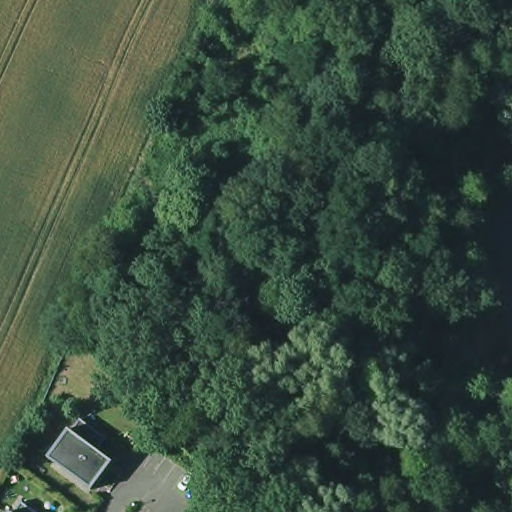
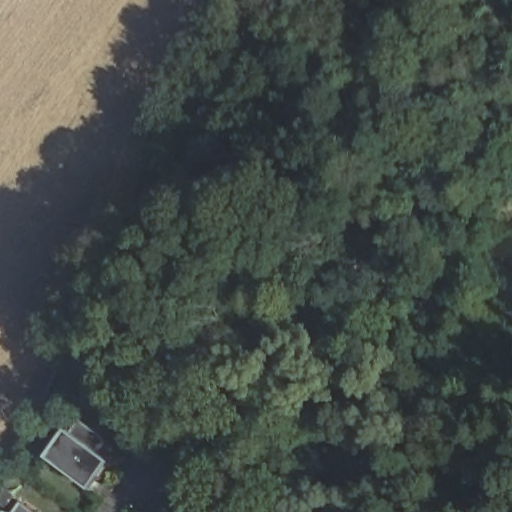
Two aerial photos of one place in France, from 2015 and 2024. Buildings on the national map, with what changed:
unchanged [(99,455),(114,467),(92,495),(53,465),(61,455),(59,453),(80,423),(109,443),(99,455)]
unchanged [(18,512),(22,505),(31,512),(18,512)]

